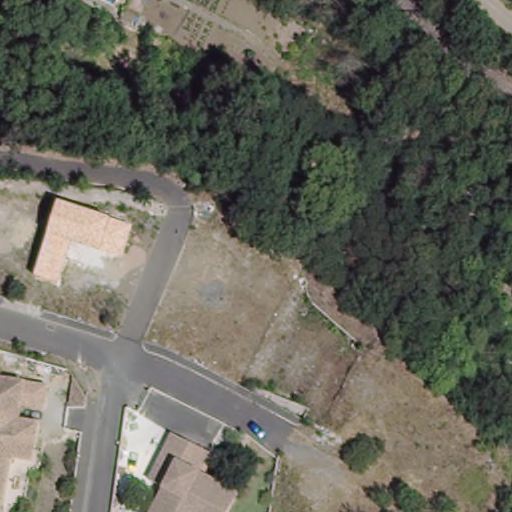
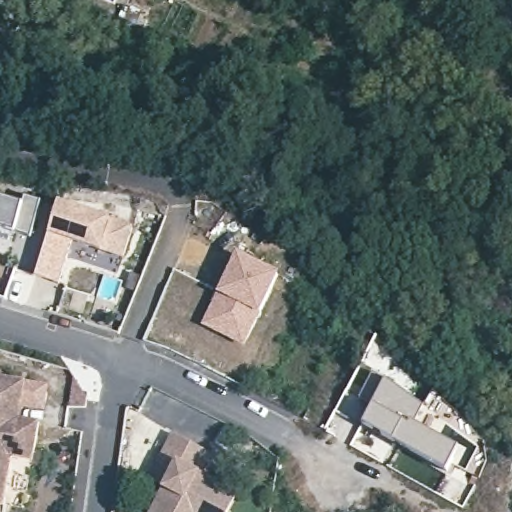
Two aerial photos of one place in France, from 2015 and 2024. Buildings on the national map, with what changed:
unchanged [(5,0),(3,7),(11,12),(0,38),(0,0),(5,0)]
unchanged [(69,66),(48,56),(55,41),(75,51),(69,66)]
new [(22,204),(24,196),(40,201),(30,238),(0,229),(0,198),(22,204)]
unchanged [(123,256),(101,249),(71,241),(58,284),(34,277),(49,235),(60,204),(113,221),(133,227),(123,256)]
new [(280,275),(261,313),(246,348),(203,326),(218,293),(239,255),(280,275)]
new [(388,383),(425,408),(415,424),(459,451),(447,469),(366,423),(376,404),(362,397),(375,374),(388,383)]
unchanged [(36,463),(15,460),(8,503),(0,502),(0,375),(29,379),(23,419),(43,421),(36,463)]
unchanged [(164,483),(152,475),(172,431),(212,447),(198,476),(236,492),(227,512),(150,512),(164,483)]

